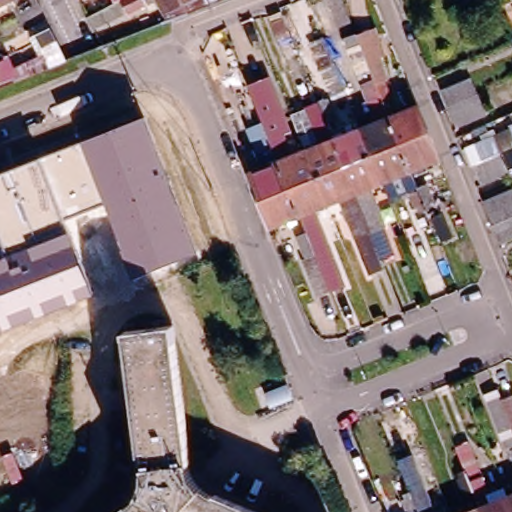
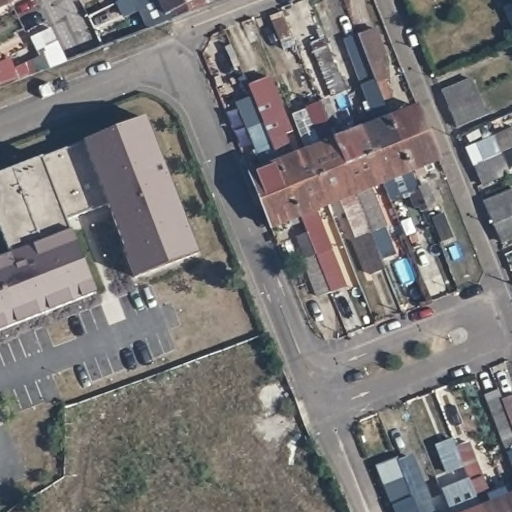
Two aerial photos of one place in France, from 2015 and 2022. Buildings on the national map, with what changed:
unchanged [(6,0),(0,3),(0,0),(6,0)]
unchanged [(142,0),(94,23),(88,11),(111,0),(142,0)]
unchanged [(191,9),(170,17),(162,0),(210,0),(211,1),(191,9)]
unchanged [(296,34),(281,40),(272,16),(286,10),(296,34)]
unchanged [(385,222),(382,222),(393,250),(380,255),(383,263),(368,270),(339,193),(325,199),(315,172),(305,146),(320,140),(305,100),(317,95),(323,93),(325,99),(328,97),(334,111),(324,114),(332,135),(360,123),(375,117),(343,35),(355,30),(373,23),(383,49),(378,51),(388,74),(375,79),(380,92),(388,112),(416,100),(423,116),(427,127),(437,153),(409,165),(381,176),(368,181),(385,222)]
unchanged [(36,43),(32,36),(51,27),(54,34),(57,40),(38,49),(36,43)]
unchanged [(334,87),(316,42),(329,37),(347,82),(334,87)]
unchanged [(11,59),(19,75),(0,82),(0,63),(11,59)]
unchanged [(301,247),(296,234),(305,230),(297,210),(270,221),(259,195),(249,169),(262,163),(247,124),(238,100),(250,96),(259,119),(261,118),(252,95),(250,90),(245,78),(246,78),(264,71),(287,127),(280,130),(289,152),(305,146),(315,172),(325,199),(312,204),(340,276),(326,282),(314,286),(299,247),(301,247)]
unchanged [(461,123),(452,105),(445,90),(473,77),(480,92),(488,111),(461,123)]
unchanged [(11,254),(0,229),(0,175),(147,117),(198,252),(134,277),(106,202),(66,220),(96,294),(0,331),(0,258),(11,254)]
unchanged [(480,162),(471,144),(497,133),(505,151),(512,168),(512,173),(489,183),(480,162)]
unchanged [(425,211),(423,205),(418,207),(412,193),(422,190),(432,186),(437,200),(433,201),(436,207),(430,209),(425,211)]
unchanged [(496,224),(487,201),(512,190),(512,240),(504,244),(496,224)]
unchanged [(444,245),(431,214),(443,209),(455,239),(444,245)]
demolished [(194,472),(209,487),(267,512),(116,512),(140,495),(148,462),(128,327),(174,321),(194,472)]
unchanged [(491,406),(503,401),(507,411),(512,408),(512,455),(510,456),(491,406)]
unchanged [(441,491),(461,483),(466,481),(464,475),(468,473),(462,458),(474,453),(483,475),(479,476),(484,489),(488,487),(493,500),(489,502),(492,510),(512,501),(512,512),(450,512),(441,491)]
unchanged [(406,505),(404,501),(393,507),(376,468),(397,458),(399,462),(414,455),(437,512),(409,512),(406,505)]
demolished [(354,506),(356,512),(343,512),(343,510),(354,506)]

